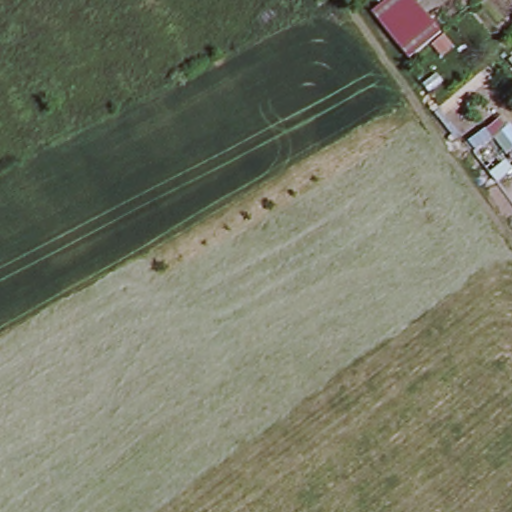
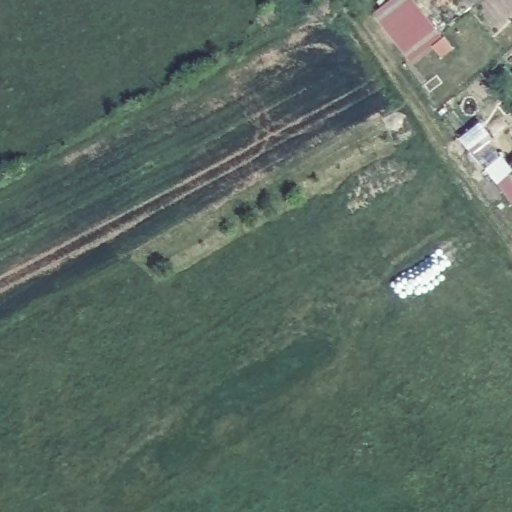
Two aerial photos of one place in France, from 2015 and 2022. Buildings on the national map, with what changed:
unchanged [(375,8),(386,0),(419,0),(443,31),(412,56),(375,8)]

